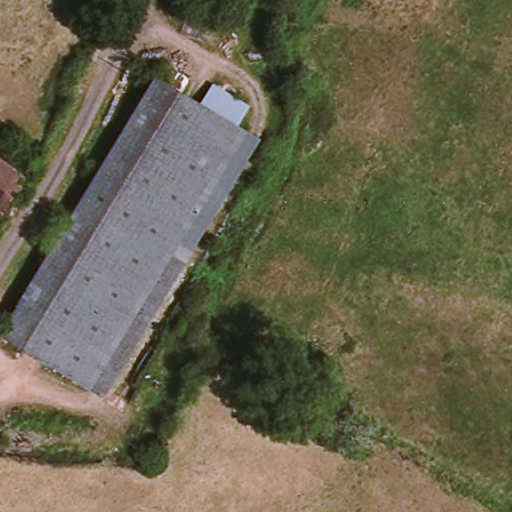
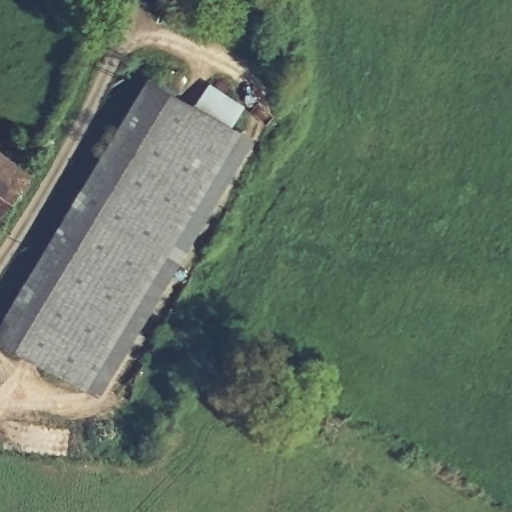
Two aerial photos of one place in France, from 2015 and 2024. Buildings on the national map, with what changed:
unchanged [(161,79),(246,133),(193,215),(153,194),(108,161),(161,79)]
unchanged [(0,332),(0,331),(108,161),(153,194),(193,215),(95,373),(85,388),(69,377),(0,332)]
unchanged [(0,187),(7,193),(0,203),(0,187)]

